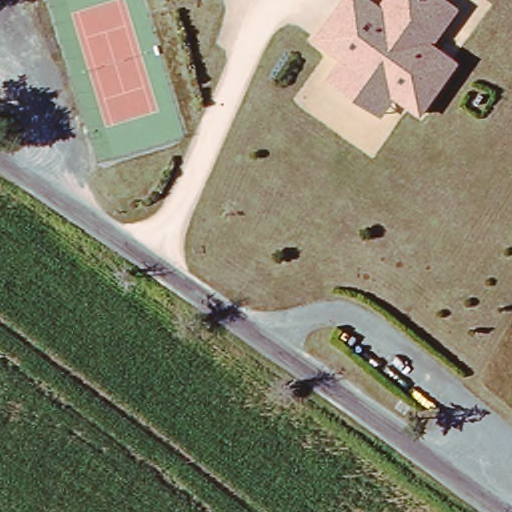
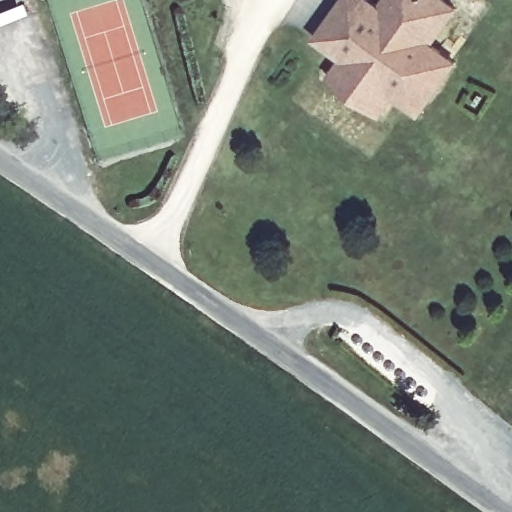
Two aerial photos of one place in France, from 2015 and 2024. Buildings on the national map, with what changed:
unchanged [(461,11),(435,45),(460,64),(420,112),(396,94),(347,56),(327,41),(320,35),(347,0),(376,0),(385,6),(390,0),(446,0),(461,11)]
unchanged [(382,112),(332,74),(347,56),(396,94),(382,112)]

